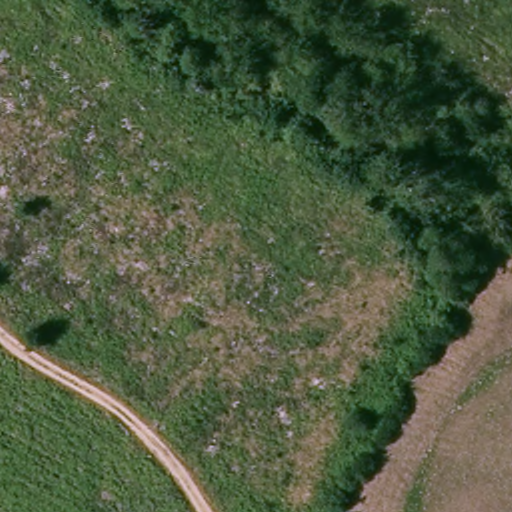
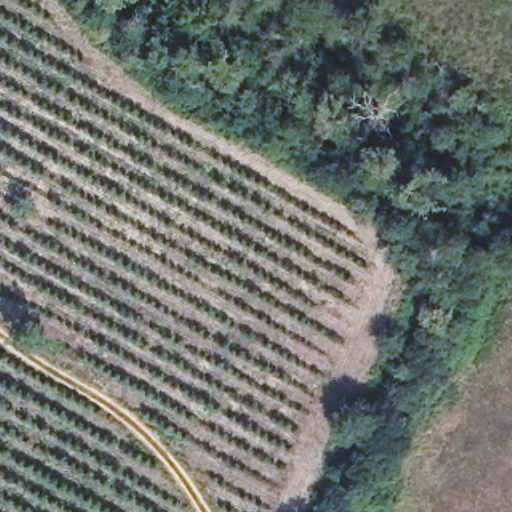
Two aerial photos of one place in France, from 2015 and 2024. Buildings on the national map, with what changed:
[]

